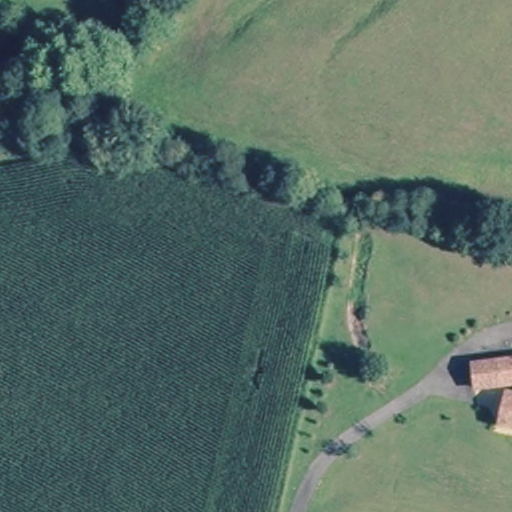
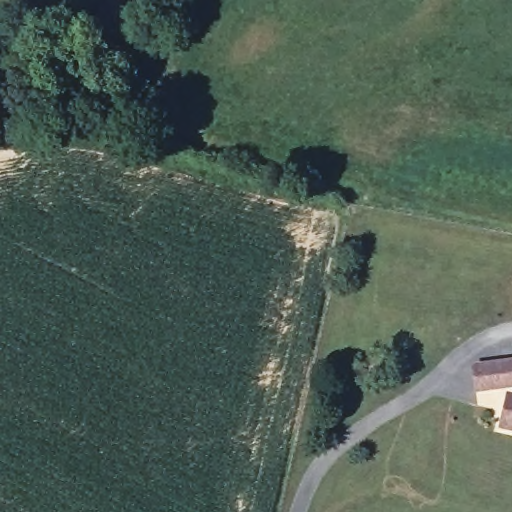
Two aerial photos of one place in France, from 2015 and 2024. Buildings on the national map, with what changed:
unchanged [(490,387),(474,388),(472,363),(488,361),(512,358),(512,385),(490,387)]
unchanged [(499,435),(507,400),(512,400),(512,438),(499,435)]

